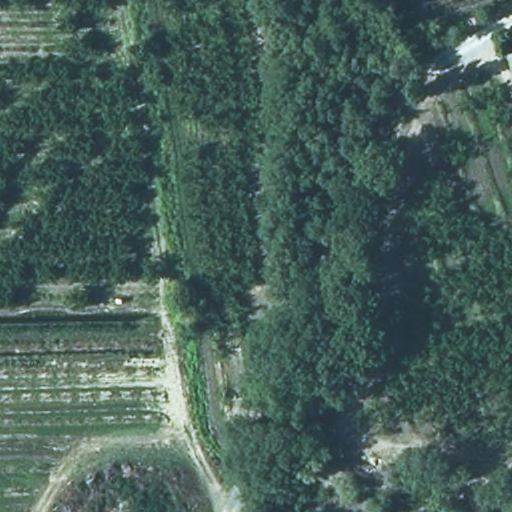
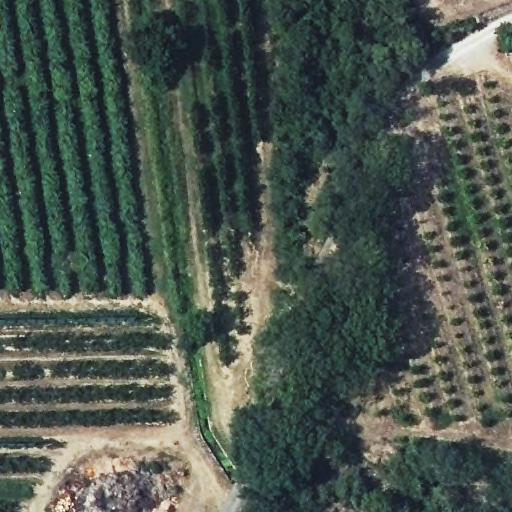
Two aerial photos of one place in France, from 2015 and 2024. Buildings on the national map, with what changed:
unchanged [(512,49),(512,73),(502,54),(512,49)]

